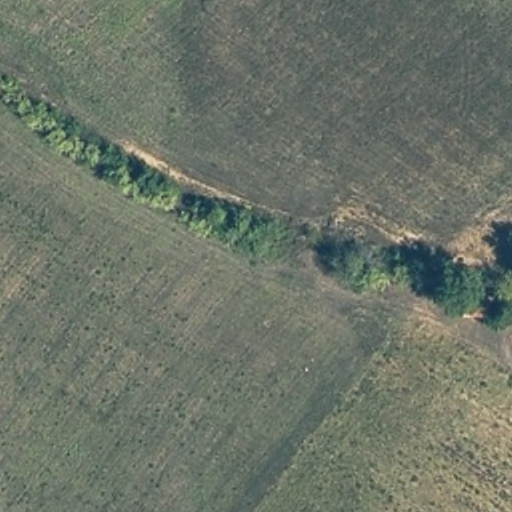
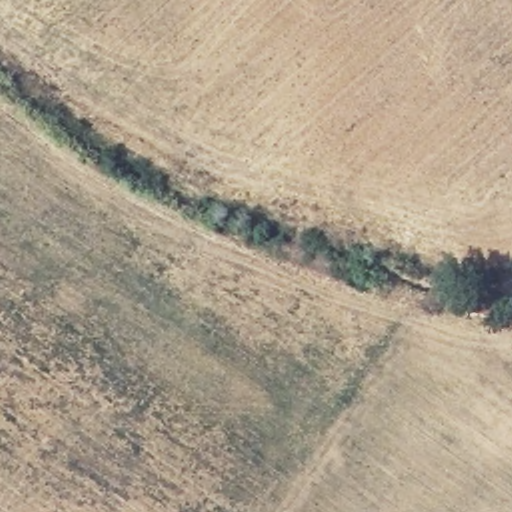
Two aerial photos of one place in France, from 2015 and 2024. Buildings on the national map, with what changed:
unchanged [(468,316),(471,295),(492,299),(491,318),(468,316)]

